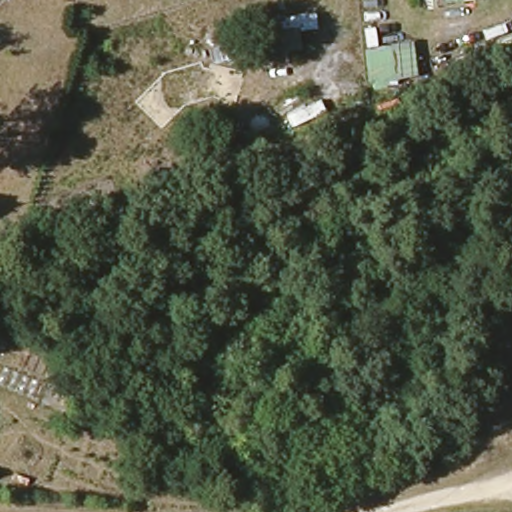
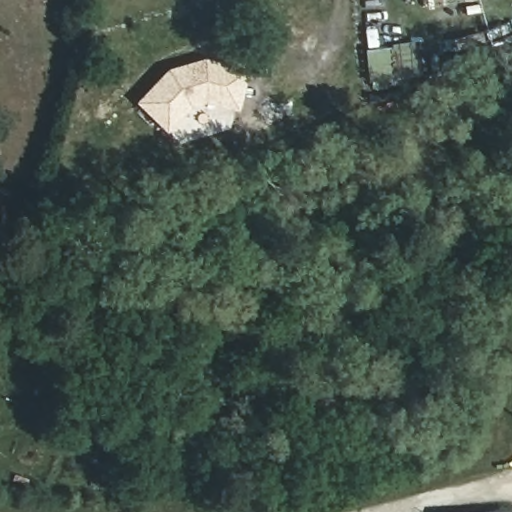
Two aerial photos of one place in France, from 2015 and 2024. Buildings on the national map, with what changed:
unchanged [(319,31),(271,36),(270,21),(316,14),(319,31)]
unchanged [(417,77),(369,83),(365,49),(412,44),(417,77)]
new [(161,67),(198,57),(245,67),(235,110),(200,101),(186,104),(161,128),(133,101),(161,67)]
demolished [(465,509),(465,512),(457,512),(465,509)]

